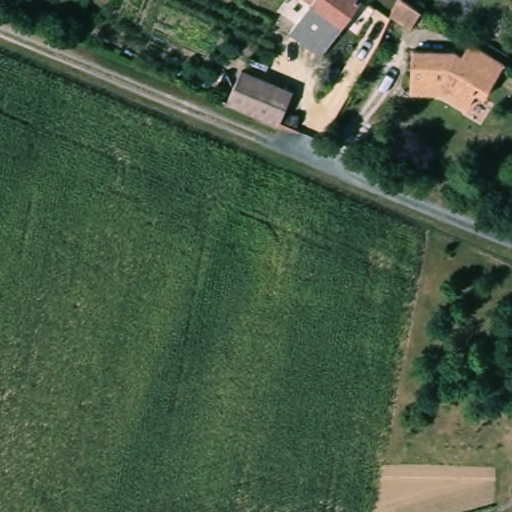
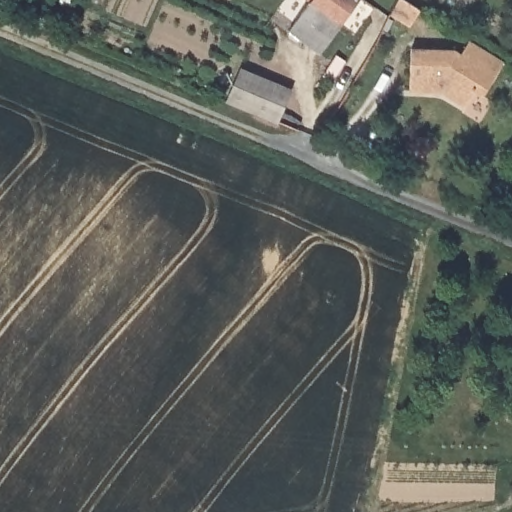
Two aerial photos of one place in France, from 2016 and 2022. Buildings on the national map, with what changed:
unchanged [(295,26),(313,0),(362,0),(328,49),(295,26)]
unchanged [(409,26),(387,14),(388,14),(396,0),(404,0),(419,9),(409,26)]
unchanged [(416,95),(410,53),(453,49),(460,53),(469,39),(503,60),(483,94),(475,89),(465,106),(441,91),(416,95)]
unchanged [(288,92),(284,118),(241,96),(245,86),(250,79),(251,77),(252,74),(288,92)]

